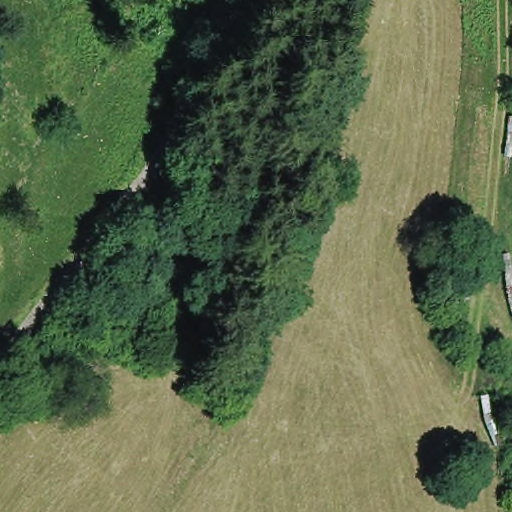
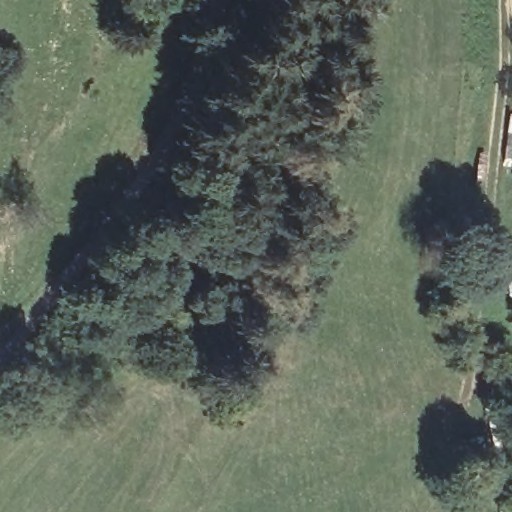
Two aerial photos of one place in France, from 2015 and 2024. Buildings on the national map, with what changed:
[]

